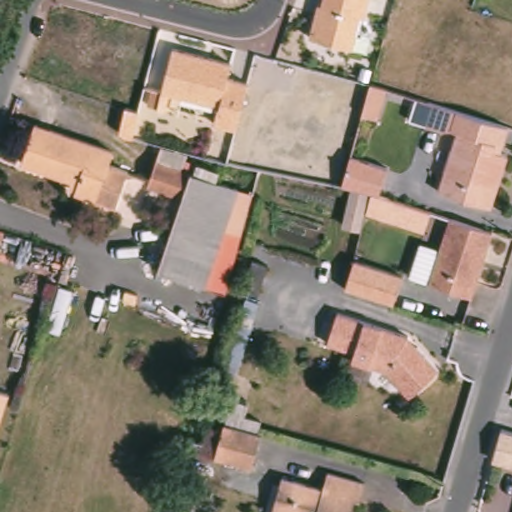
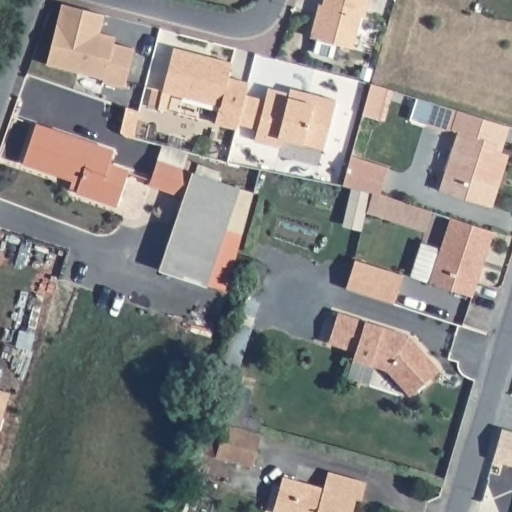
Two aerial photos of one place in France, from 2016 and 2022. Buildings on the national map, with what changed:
unchanged [(322,5),(323,0),(369,0),(365,19),(360,17),(353,48),(310,36),(317,3),(322,5)]
new [(103,15),(99,32),(115,36),(113,41),(112,44),(133,49),(124,87),(102,82),(99,97),(73,89),(77,72),(45,64),(61,4),(103,15)]
unchanged [(172,48),(230,62),(227,77),(247,82),(236,129),(215,125),(219,106),(161,92),(172,48)]
unchanged [(375,80),(391,86),(382,117),(363,111),(372,80),(375,80)]
new [(252,140),(256,129),(238,124),(245,94),(264,99),(267,87),(287,92),(290,87),(335,100),(321,149),(303,144),(283,138),(280,147),(252,140)]
unchanged [(496,156),(505,159),(486,210),(435,192),(455,135),(448,132),(446,138),(423,131),(431,106),(438,109),(455,114),(505,130),(498,150),(496,156)]
unchanged [(68,180),(20,161),(35,124),(110,153),(105,167),(124,175),(111,208),(72,193),(73,190),(65,187),(68,180)]
unchanged [(235,191),(213,248),(206,264),(197,288),(150,270),(160,246),(165,233),(179,198),(144,185),(154,160),(158,150),(183,160),(179,170),(186,173),(235,191)]
unchanged [(390,165),(380,191),(373,189),(344,180),(352,152),(390,165)]
new [(366,212),(371,192),(431,210),(425,231),(366,212)]
unchanged [(489,237),(468,301),(425,287),(446,223),(489,237)]
unchanged [(270,257),(261,288),(246,284),(255,253),(270,257)]
unchanged [(407,273),(398,302),(379,296),(352,287),(360,258),(407,273)]
new [(246,301),(263,306),(241,375),(224,370),(246,301)]
unchanged [(402,401),(382,379),(345,360),(346,355),(321,347),(330,315),(401,338),(402,340),(410,350),(432,375),(402,401)]
unchanged [(0,405),(0,392),(4,392),(0,405)]
unchanged [(245,472),(208,462),(218,428),(254,439),(245,472)]
unchanged [(512,438),(512,472),(490,466),(500,435),(512,438)]
unchanged [(315,494),(319,478),(356,488),(351,505),(347,504),(345,512),(265,512),(273,481),(315,494)]

